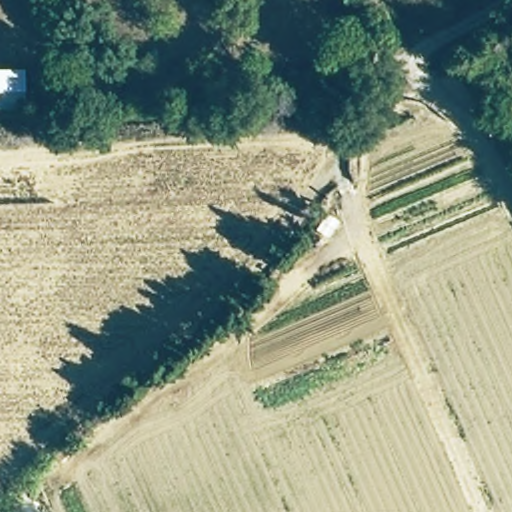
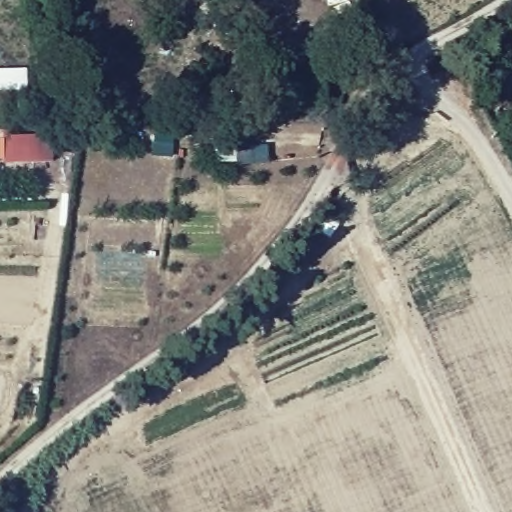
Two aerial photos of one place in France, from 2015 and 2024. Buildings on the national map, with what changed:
unchanged [(28,111),(0,111),(0,69),(28,69),(28,111)]
demolished [(286,75),(319,76),(319,93),(291,93),(286,75)]
new [(11,139),(38,137),(38,148),(52,148),(53,163),(0,165),(0,131),(10,131),(11,139)]

